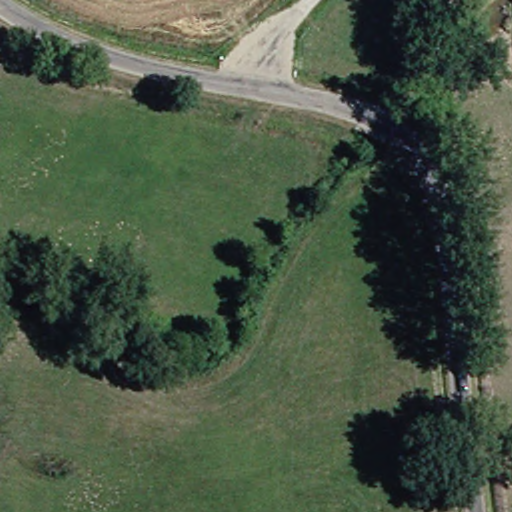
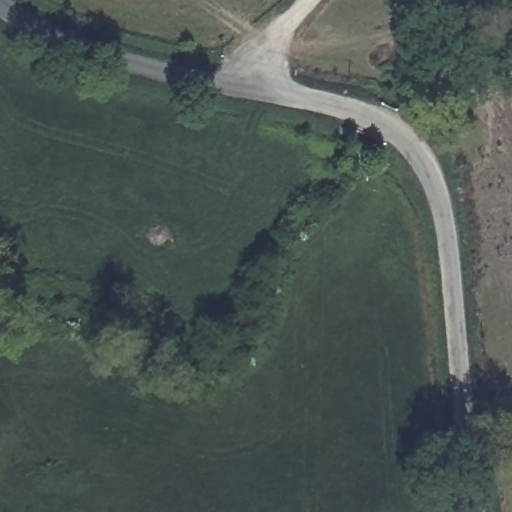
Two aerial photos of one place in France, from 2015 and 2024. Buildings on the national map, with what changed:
[]

